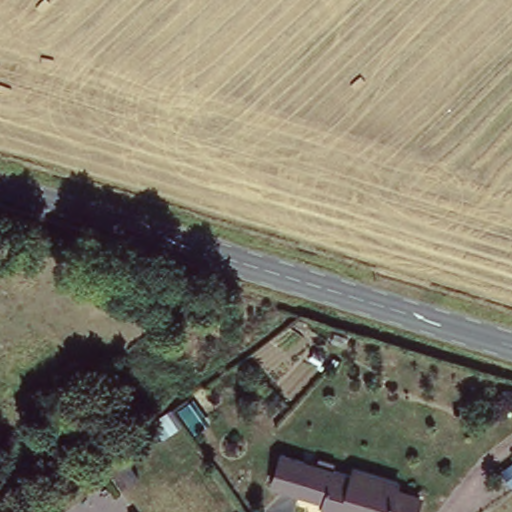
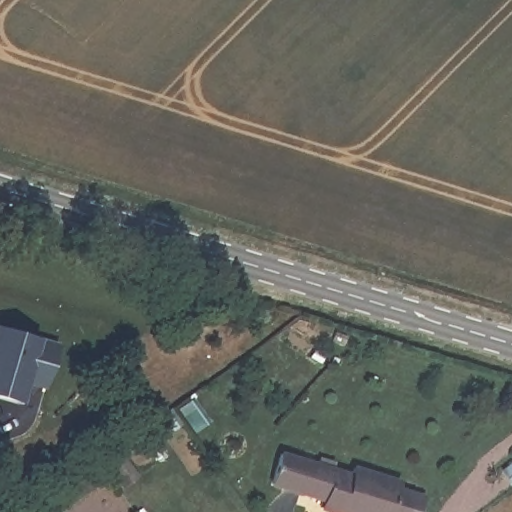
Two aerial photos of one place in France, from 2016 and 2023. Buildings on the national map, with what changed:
new [(59,342),(46,388),(26,382),(20,404),(0,399),(0,328),(40,338),(59,342)]
unchanged [(354,467),(399,481),(397,489),(422,496),(416,512),(332,512),(321,508),(322,501),(271,486),(282,453),(351,474),(354,467)]
unchanged [(508,458),(512,457),(512,468),(508,458)]

